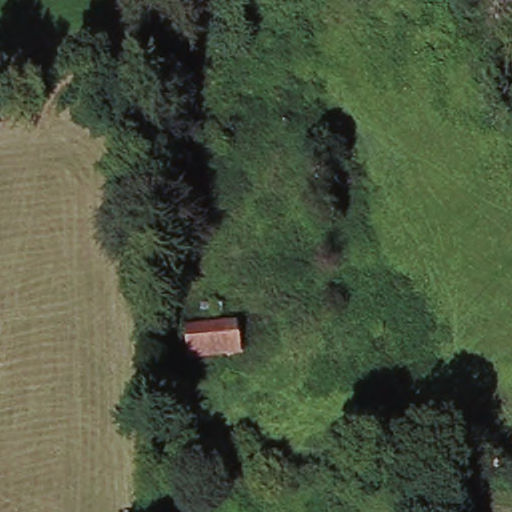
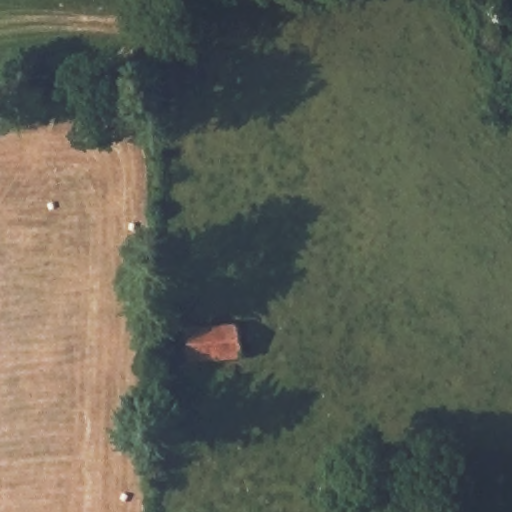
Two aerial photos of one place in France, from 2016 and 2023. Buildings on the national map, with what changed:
unchanged [(243,358),(189,359),(190,328),(241,326),(243,358)]

